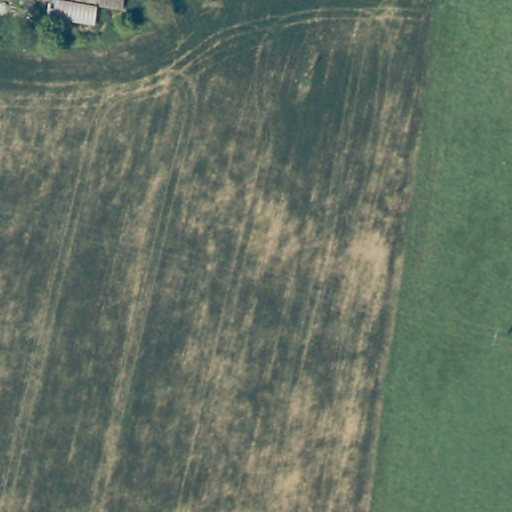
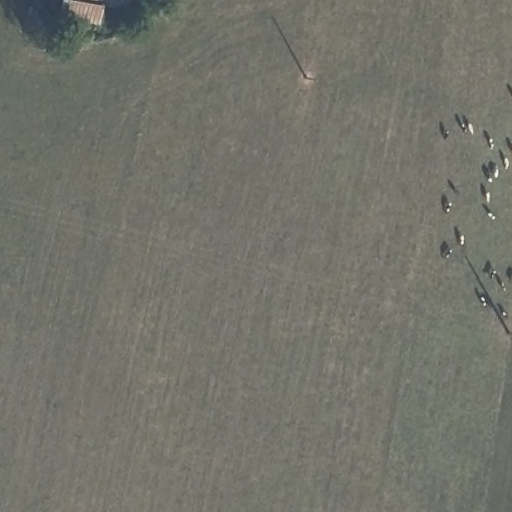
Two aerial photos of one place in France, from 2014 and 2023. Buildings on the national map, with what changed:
unchanged [(88,0),(125,0),(124,5),(88,0)]

